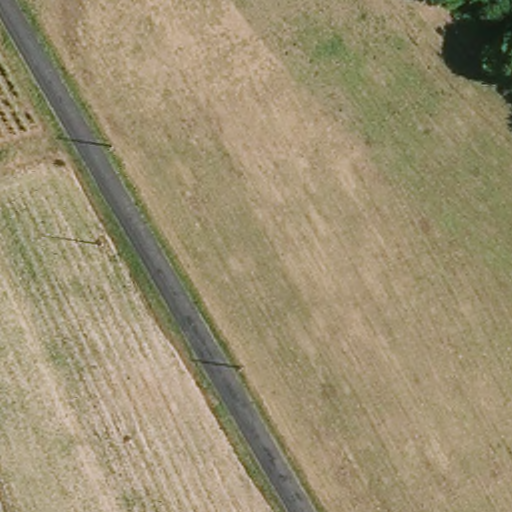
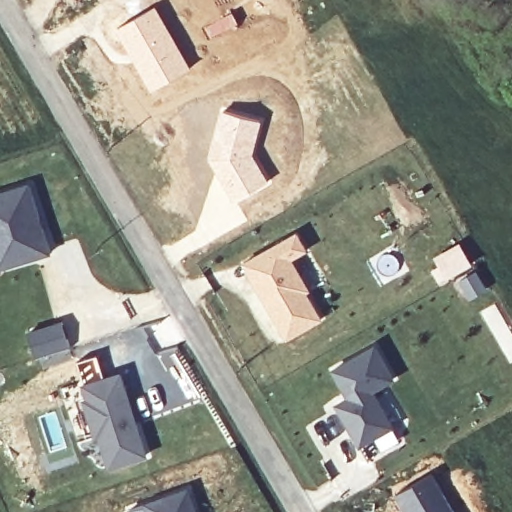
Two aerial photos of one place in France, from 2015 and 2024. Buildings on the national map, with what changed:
new [(156,4),(192,65),(152,90),(115,30),(156,4)]
new [(221,108),(263,118),(254,152),(269,180),(234,203),(207,160),(221,108)]
new [(28,183),(50,252),(13,263),(0,268),(0,192),(28,183)]
new [(307,249),(291,257),(309,288),(306,291),(322,318),(287,338),(271,310),(277,307),(270,295),(268,297),(256,276),(252,277),(244,262),(267,250),(297,232),(307,249)]
new [(375,346),(393,378),(372,390),(402,442),(369,461),(338,407),(350,400),(333,370),(375,346)]
new [(121,372),(147,453),(110,465),(101,433),(97,435),(85,398),(89,397),(84,383),(121,372)]
new [(450,501),(456,512),(398,512),(389,498),(430,472),(450,501)]
new [(188,485),(199,512),(126,512),(125,510),(188,485)]

